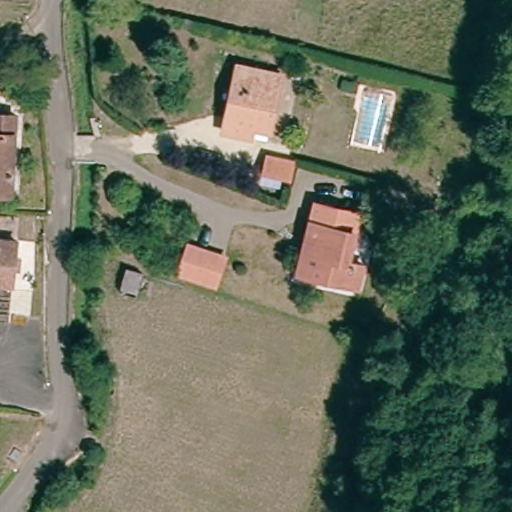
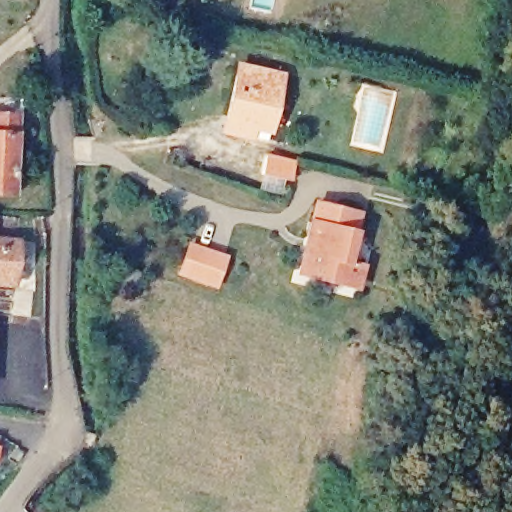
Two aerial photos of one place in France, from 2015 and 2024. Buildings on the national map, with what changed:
unchanged [(272,140),(229,127),(246,63),(287,74),(272,140)]
unchanged [(22,115),(18,194),(0,193),(0,114),(22,115)]
unchanged [(279,191),(245,180),(252,157),(286,169),(279,191)]
unchanged [(354,231),(363,234),(354,266),(367,270),(362,290),(301,273),(308,247),(316,250),(321,228),(314,224),(320,202),(359,215),(354,231)]
unchanged [(22,241),(20,287),(0,286),(0,239),(22,241)]
unchanged [(206,280),(183,272),(192,245),(214,252),(229,256),(220,283),(206,280)]
unchanged [(114,291),(86,282),(93,256),(119,263),(114,291)]

